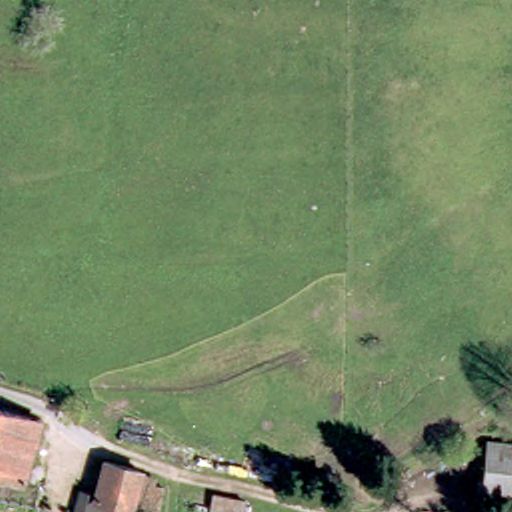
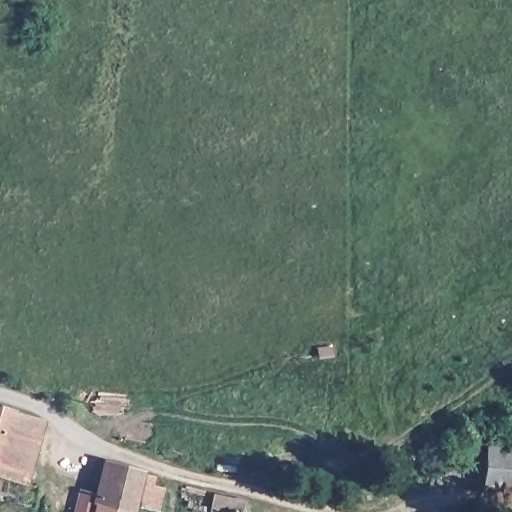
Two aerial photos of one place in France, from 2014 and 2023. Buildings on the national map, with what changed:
unchanged [(0,473),(0,410),(9,412),(10,408),(37,414),(35,419),(19,477),(0,473)]
unchanged [(487,435),(512,440),(512,489),(479,483),(487,435)]
unchanged [(75,502),(80,484),(94,487),(108,451),(140,466),(170,475),(160,510),(141,505),(96,495),(94,501),(91,512),(74,512),(75,502)]
unchanged [(245,511),(221,504),(225,491),(249,498),(245,511)]

